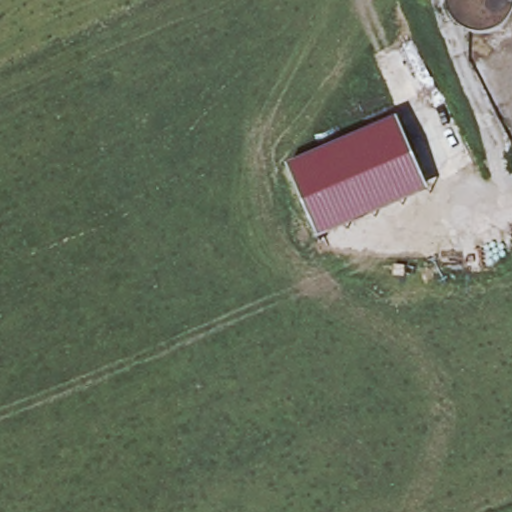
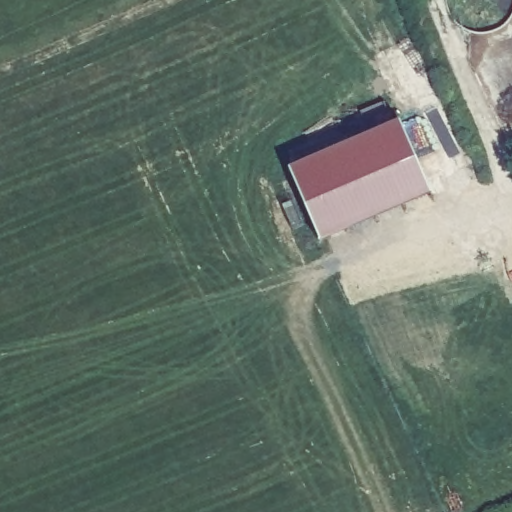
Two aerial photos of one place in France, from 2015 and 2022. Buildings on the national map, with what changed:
unchanged [(399,120),(431,194),(321,240),(290,167),(399,120)]

